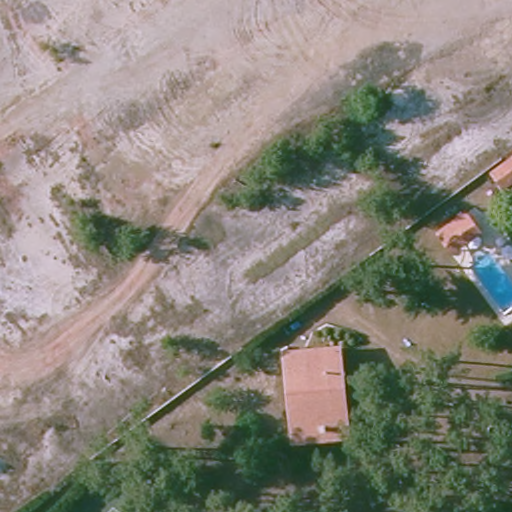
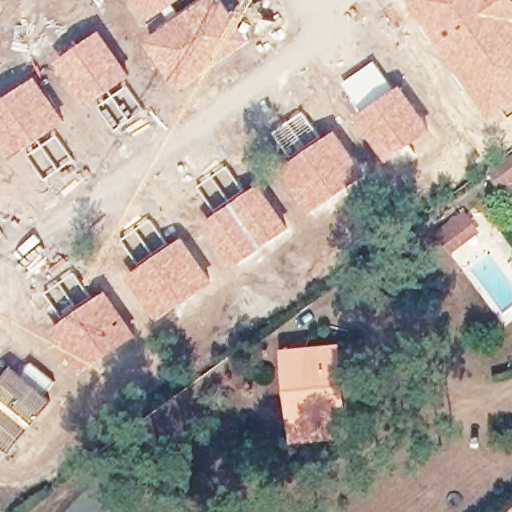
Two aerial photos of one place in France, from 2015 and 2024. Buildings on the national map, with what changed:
new [(151,22),(135,0),(183,0),(151,22)]
new [(203,0),(225,0),(253,41),(223,64),(181,92),(146,42),(203,0)]
new [(493,120),(440,48),(407,0),(512,0),(512,107),(493,120)]
new [(101,30),(133,76),(87,109),(55,62),(101,30)]
new [(374,60),(395,89),(360,112),(340,82),(374,60)]
new [(68,122),(10,160),(0,146),(0,102),(37,77),(68,122)]
new [(360,112),(395,89),(401,84),(434,131),(387,164),(355,117),(360,112)]
new [(302,108),(323,137),(290,161),(271,131),(302,108)]
new [(290,161),(323,137),(336,130),(368,177),(311,216),(280,169),(290,161)]
unchanged [(512,160),(512,184),(501,192),(490,177),(512,160)]
new [(261,183),(292,230),(236,268),(206,223),(261,183)]
unchanged [(454,252),(440,232),(466,214),(481,234),(454,252)]
new [(182,237),(215,282),(158,322),(125,278),(182,237)]
new [(105,290),(138,336),(82,374),(51,331),(105,290)]
unchanged [(281,356),(333,350),(336,371),(325,372),(331,427),(291,433),(281,356)]
new [(21,372),(31,361),(55,382),(46,392),(55,400),(10,454),(0,446),(0,379),(12,364),(21,372)]
unchanged [(345,437),(292,443),(291,433),(331,427),(325,372),(336,371),(345,437)]

